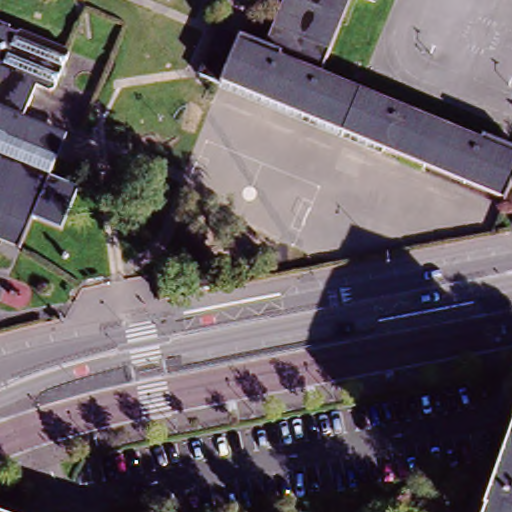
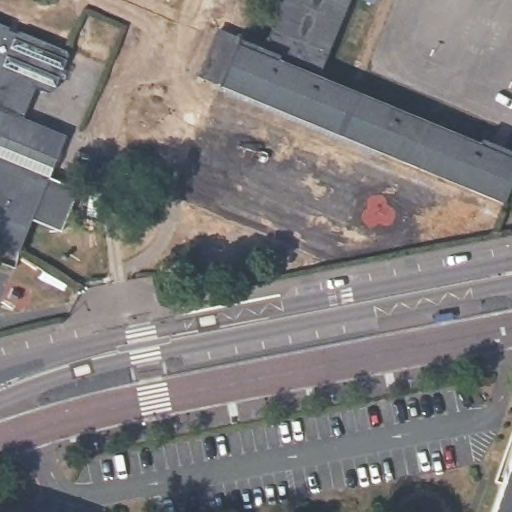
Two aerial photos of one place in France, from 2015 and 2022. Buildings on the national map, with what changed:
unchanged [(260,49),(280,0),(347,0),(316,72),(512,154),(512,171),(499,205),(192,76),(204,50),(212,29),(232,37),(260,49)]
unchanged [(0,137),(0,25),(5,27),(3,32),(10,35),(18,33),(19,35),(62,52),(65,59),(50,90),(42,94),(31,89),(19,117),(63,136),(52,160),(0,137)]
unchanged [(28,217),(14,252),(0,247),(0,159),(45,179),(28,217)]
unchanged [(45,179),(75,190),(60,230),(28,217),(45,179)]
unchanged [(200,288),(195,262),(215,259),(220,285),(200,288)]
unchanged [(512,456),(512,512),(492,512),(512,456)]

